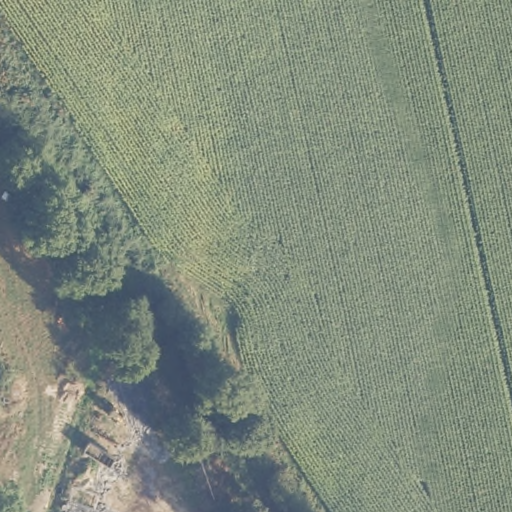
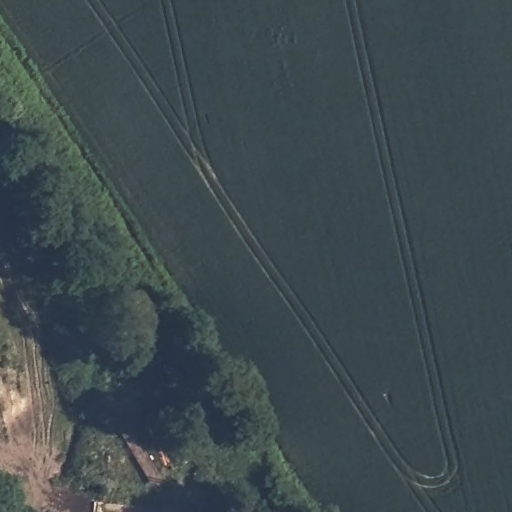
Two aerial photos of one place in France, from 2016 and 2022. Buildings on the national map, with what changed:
[]

